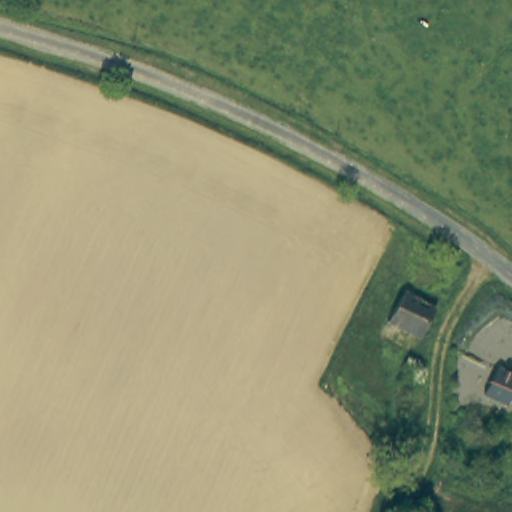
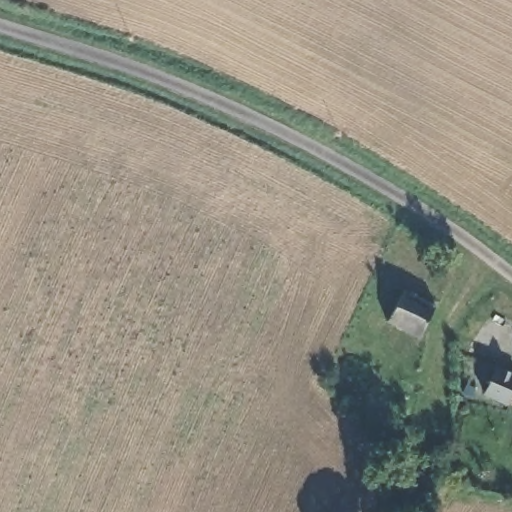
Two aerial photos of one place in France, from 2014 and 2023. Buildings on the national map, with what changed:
unchanged [(421,333),(389,317),(405,285),(436,301),(421,333)]
unchanged [(509,399),(488,392),(498,362),(512,368),(512,390),(509,399)]

